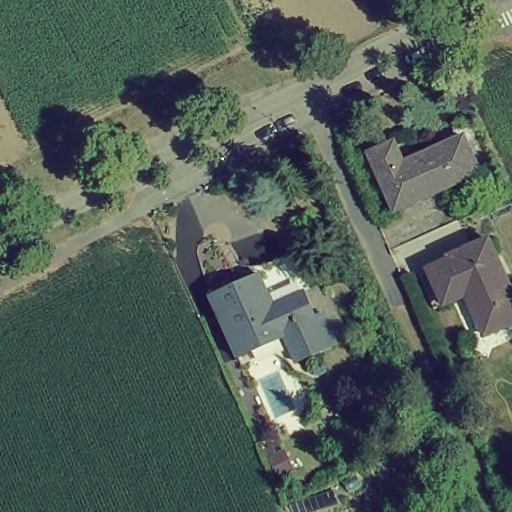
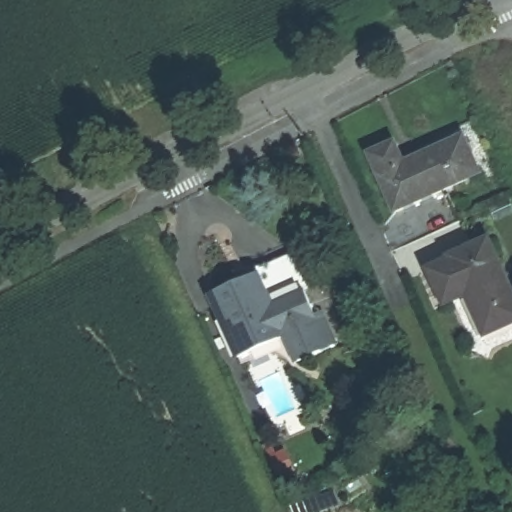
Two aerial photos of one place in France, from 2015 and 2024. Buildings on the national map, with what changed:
unchanged [(392,208),(369,151),(397,139),(405,160),(460,134),(476,171),(392,208)]
unchanged [(512,329),(492,338),(473,297),(452,307),(437,274),(456,265),(454,260),(495,242),(512,279),(512,329)]
unchanged [(288,354),(295,351),(290,338),(243,359),(217,296),(292,261),(307,293),(319,287),(327,283),(354,342),(345,346),(296,372),(288,354)]

